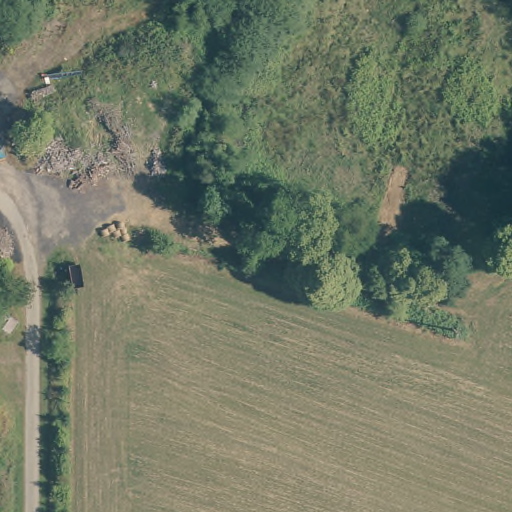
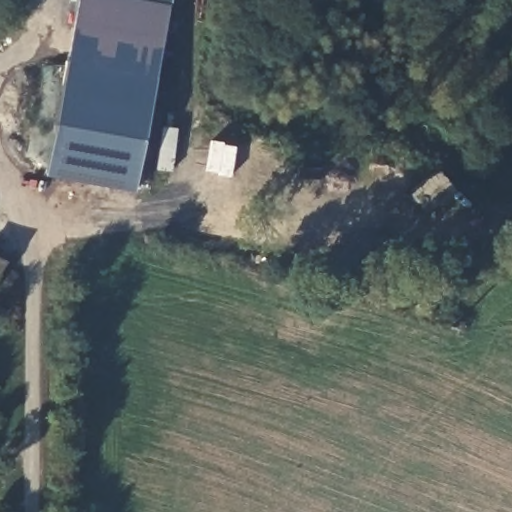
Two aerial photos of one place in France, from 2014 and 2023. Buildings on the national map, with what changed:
new [(77,0),(144,0),(169,4),(155,76),(66,60),(77,0)]
new [(135,191),(47,176),(66,60),(155,76),(135,191)]
unchanged [(0,279),(0,259),(10,265),(0,279)]

